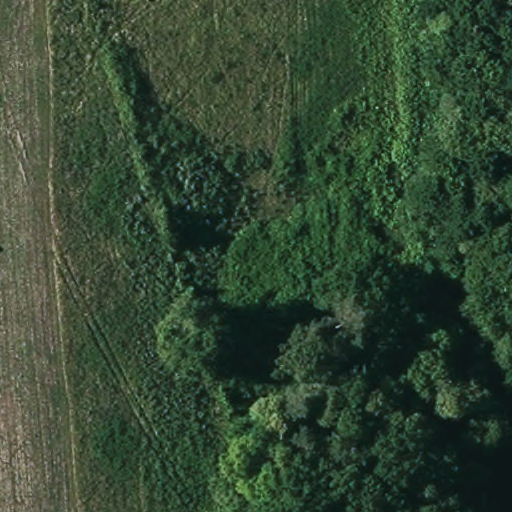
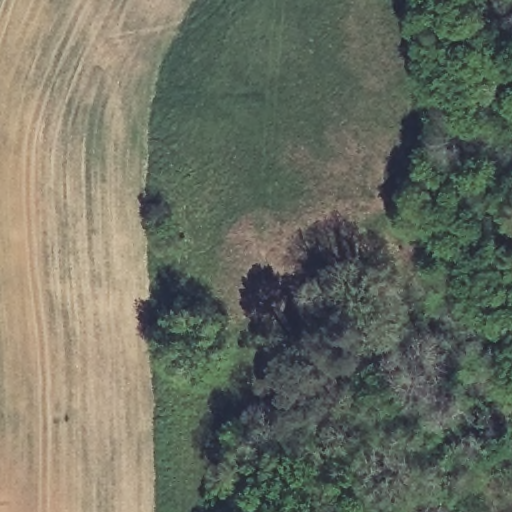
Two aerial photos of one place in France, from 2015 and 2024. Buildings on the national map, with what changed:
[]

